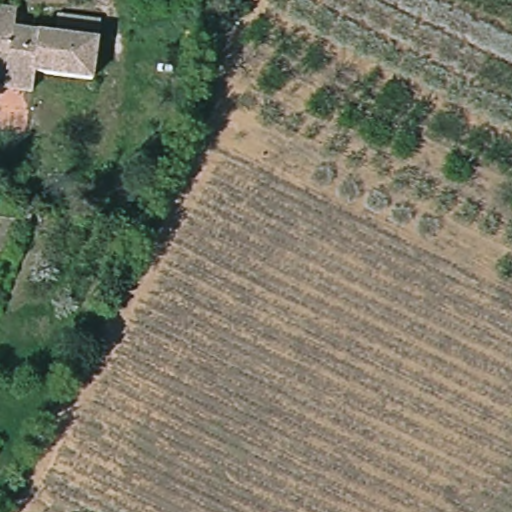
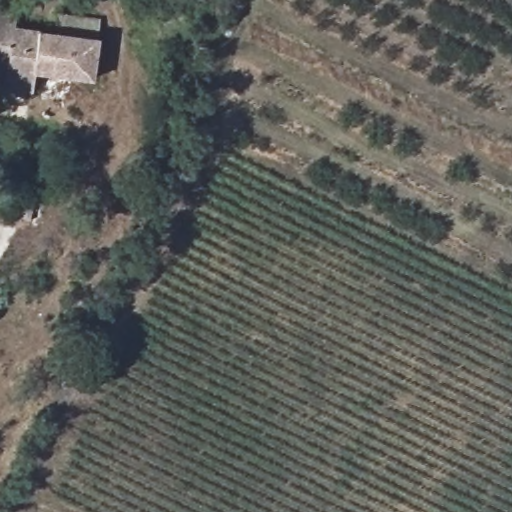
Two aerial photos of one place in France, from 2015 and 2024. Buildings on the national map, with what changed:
unchanged [(35,73),(32,92),(2,90),(3,79),(0,79),(0,5),(15,7),(15,27),(54,31),(56,13),(99,19),(91,81),(35,73)]
unchanged [(30,222),(19,220),(20,205),(30,206),(30,222)]

